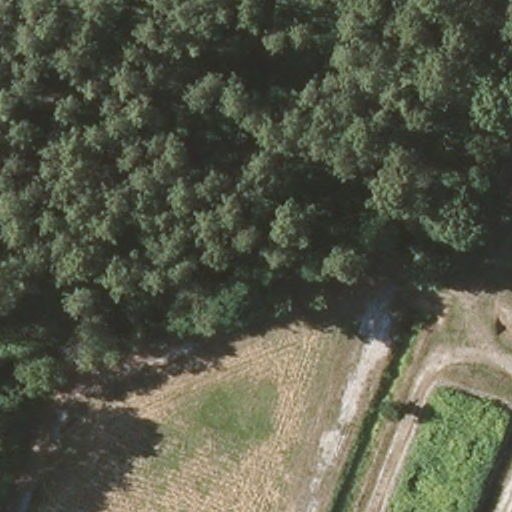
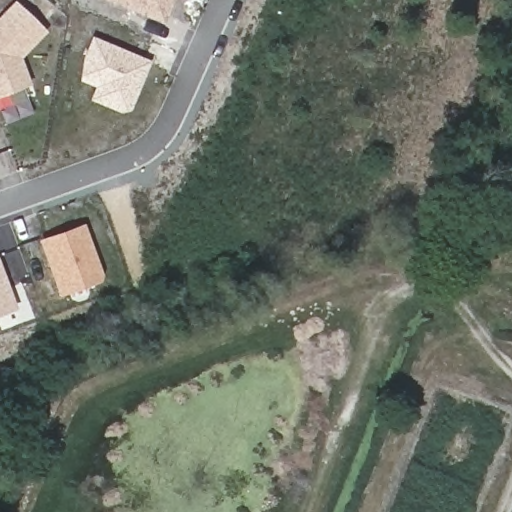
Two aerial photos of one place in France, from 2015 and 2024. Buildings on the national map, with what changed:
new [(0,96),(0,15),(15,0),(46,31),(20,59),(28,85),(0,96)]
new [(161,23),(108,0),(171,0),(161,23)]
new [(147,60),(125,110),(117,111),(85,98),(91,86),(78,80),(77,65),(88,37),(147,60)]
new [(103,280),(57,296),(37,239),(83,223),(103,280)]
new [(13,304),(12,310),(0,314),(0,268),(13,304)]

